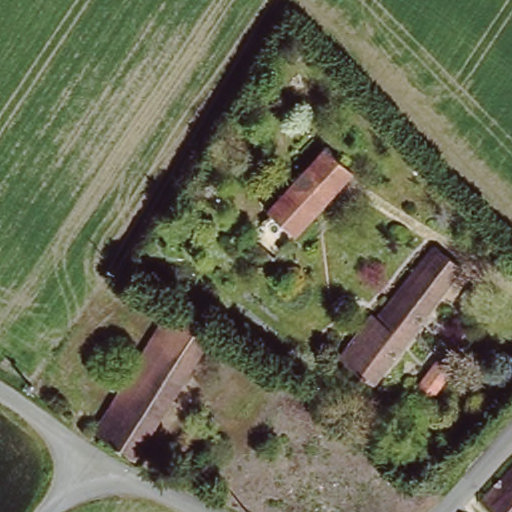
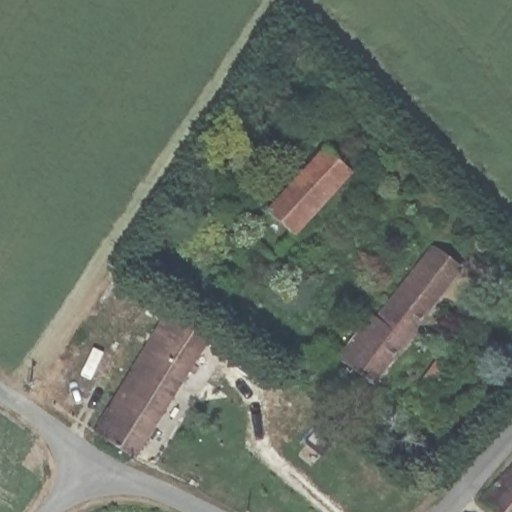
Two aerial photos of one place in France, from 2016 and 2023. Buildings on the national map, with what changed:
unchanged [(261,197),(313,137),(359,176),(306,237),(280,213),(261,197)]
unchanged [(251,247),(258,239),(280,213),(306,237),(285,262),(272,251),(265,259),(251,247)]
unchanged [(347,361),(380,316),(385,319),(439,247),(469,269),(381,386),(347,361)]
unchanged [(171,308),(212,332),(198,354),(158,330),(171,308)]
unchanged [(198,354),(136,457),(96,433),(158,330),(198,354)]
unchanged [(415,388),(420,381),(438,358),(451,368),(432,392),(427,398),(415,388)]
unchanged [(512,472),(512,512),(491,512),(482,505),(512,472)]

